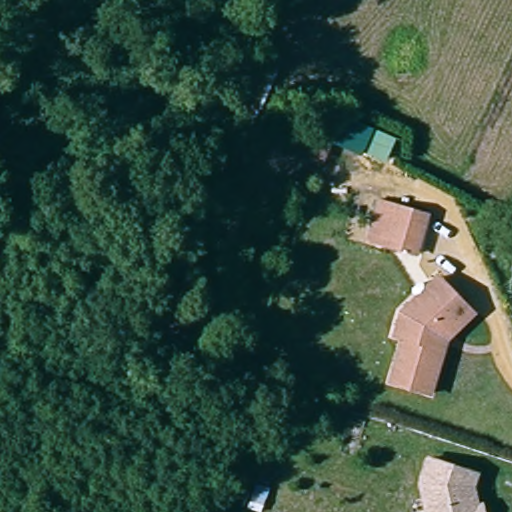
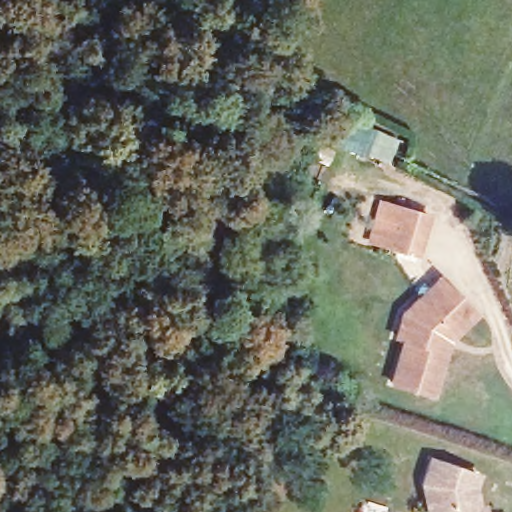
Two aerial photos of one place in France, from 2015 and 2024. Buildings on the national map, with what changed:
unchanged [(389,163),(332,140),(346,115),(399,132),(389,163)]
unchanged [(405,248),(376,241),(376,240),(387,202),(392,203),(416,210),(405,248)]
unchanged [(392,378),(404,334),(396,331),(402,308),(416,294),(439,274),(450,284),(473,308),(450,331),(448,329),(445,339),(432,389),(392,378)]
unchanged [(427,458),(475,473),(471,485),(475,505),(480,504),(482,512),(427,512),(420,481),(427,458)]

